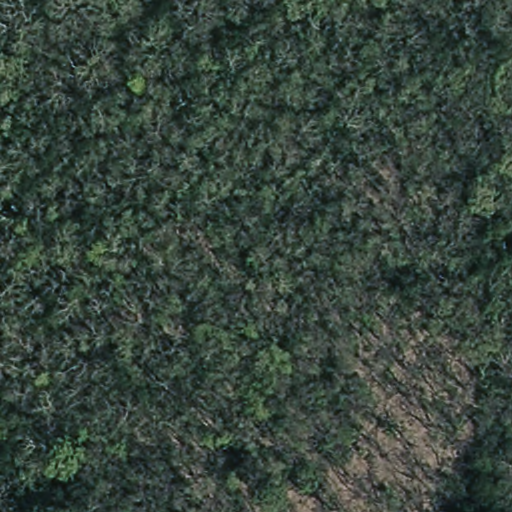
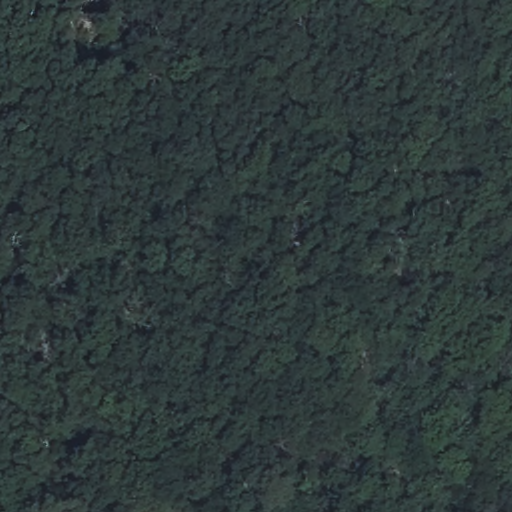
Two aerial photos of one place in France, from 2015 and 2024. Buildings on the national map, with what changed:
[]

